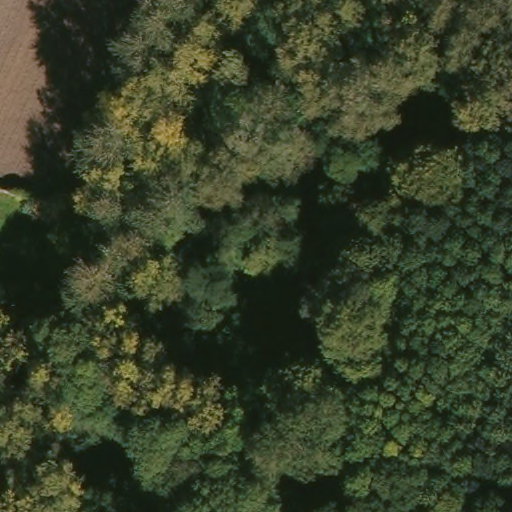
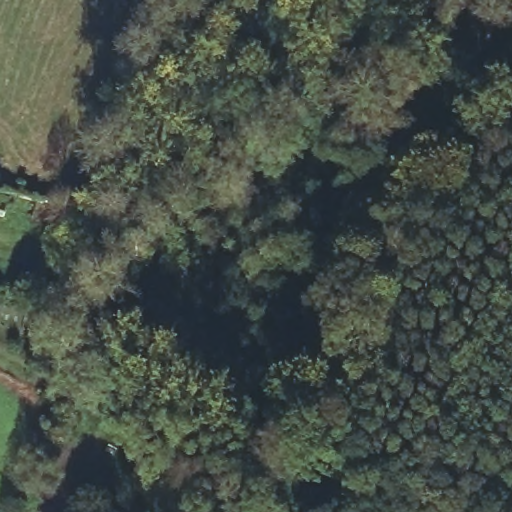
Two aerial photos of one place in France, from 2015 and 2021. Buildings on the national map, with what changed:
unchanged [(53,240),(31,235),(36,211),(59,216),(53,240)]

